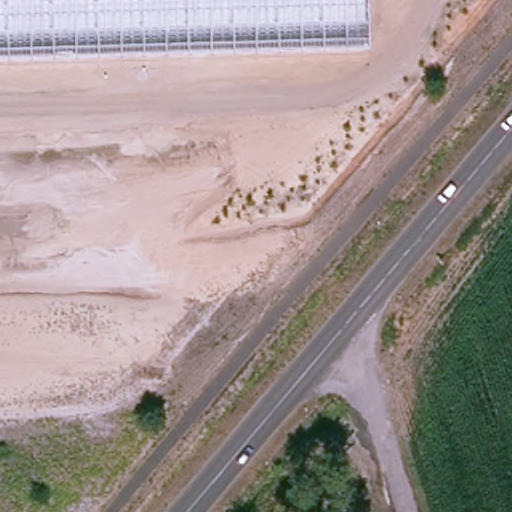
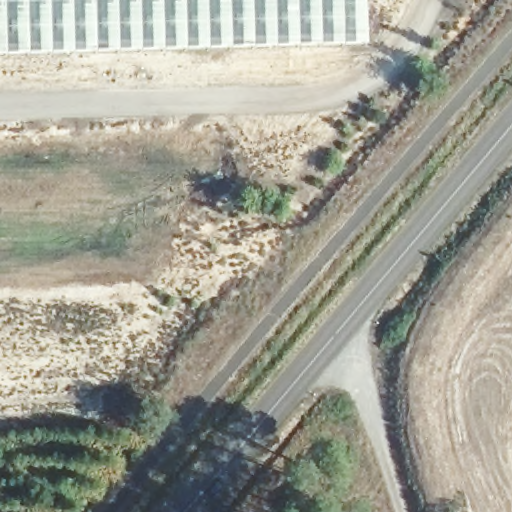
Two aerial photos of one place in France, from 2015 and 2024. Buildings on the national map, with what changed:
unchanged [(0,55),(0,0),(367,0),(368,44),(0,55)]

